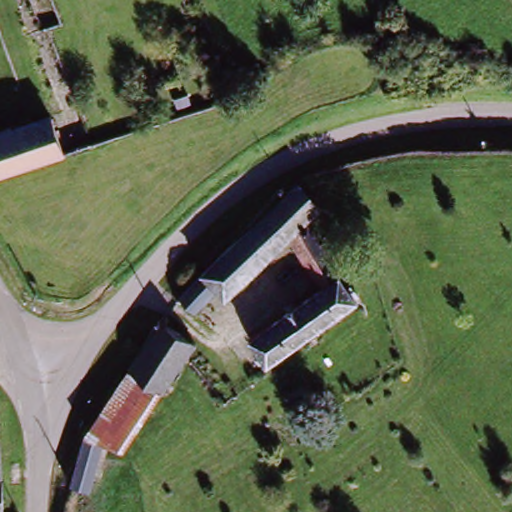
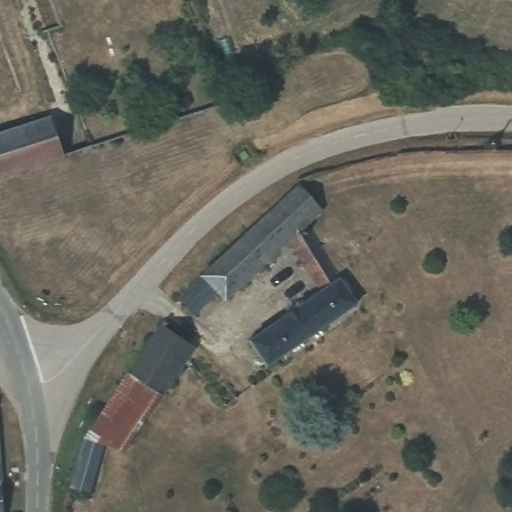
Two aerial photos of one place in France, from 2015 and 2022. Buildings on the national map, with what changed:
unchanged [(56,161),(0,180),(0,136),(44,121),(56,161)]
unchanged [(288,240),(267,210),(297,184),(315,213),(302,227),(288,240)]
unchanged [(267,210),(288,240),(222,301),(213,292),(183,322),(168,303),(267,210)]
unchanged [(310,241),(347,308),(268,372),(250,350),(272,331),(318,290),(288,240),(302,227),(310,241)]
unchanged [(360,263),(339,276),(330,260),(352,249),(360,263)]
unchanged [(177,354),(147,401),(142,398),(117,381),(149,333),(177,354)]
unchanged [(142,398),(108,452),(98,448),(80,445),(96,409),(117,381),(142,398)]
unchanged [(4,512),(0,512),(0,429),(23,500),(4,512)]
unchanged [(98,448),(86,498),(65,495),(70,473),(70,470),(80,445),(98,448)]

